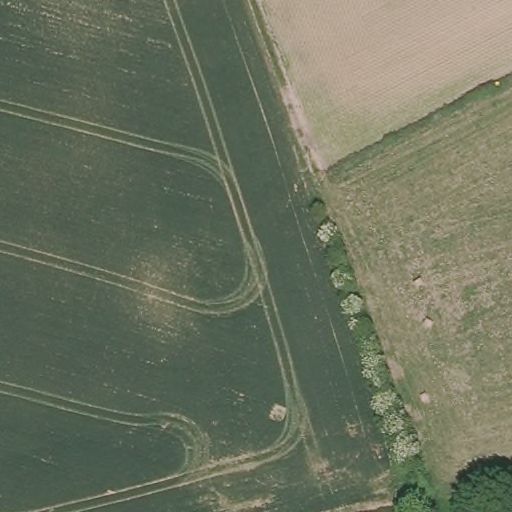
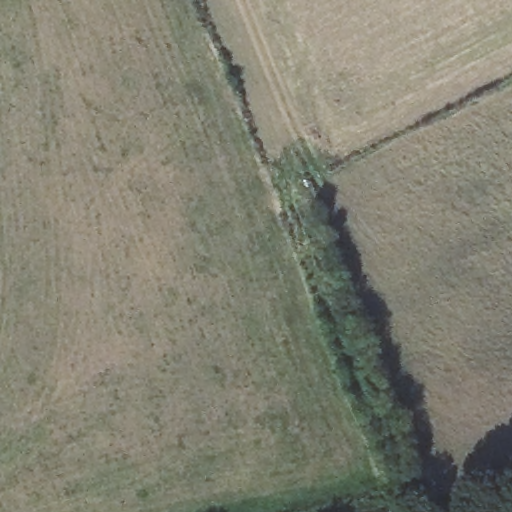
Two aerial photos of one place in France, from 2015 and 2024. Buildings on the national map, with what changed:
[]

